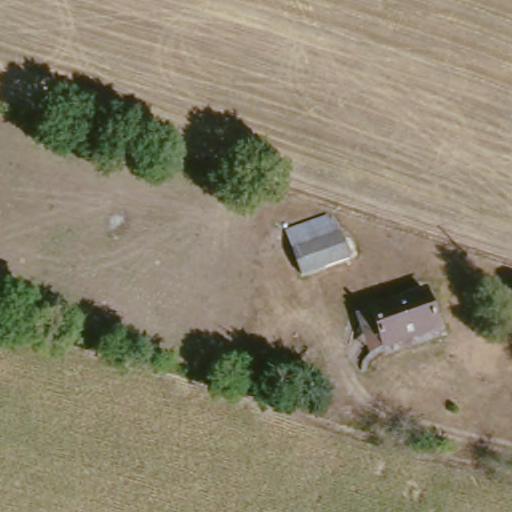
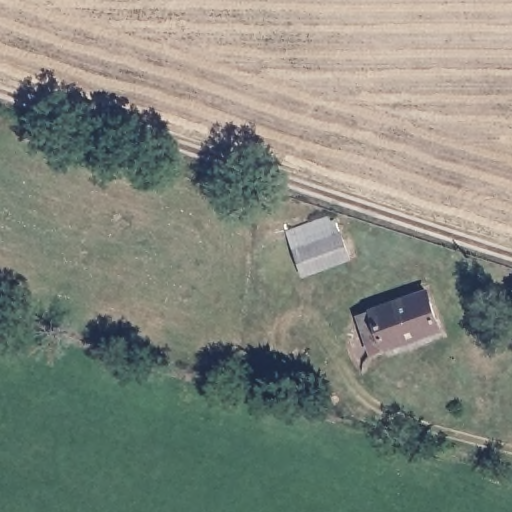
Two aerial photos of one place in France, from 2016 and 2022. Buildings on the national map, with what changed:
unchanged [(341,222),(354,246),(309,271),(297,247),(341,222)]
unchanged [(376,311),(434,285),(448,323),(391,350),(375,357),(361,317),(376,311)]

